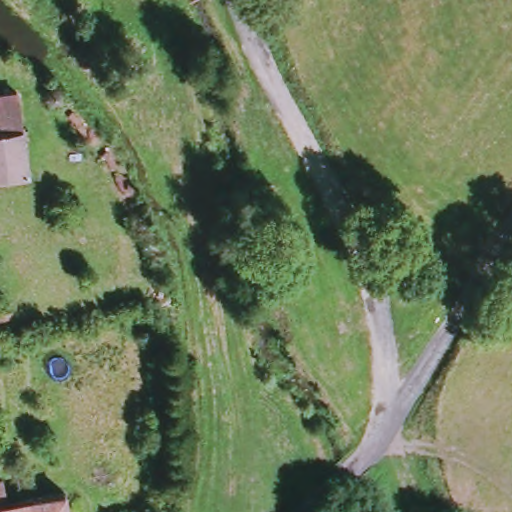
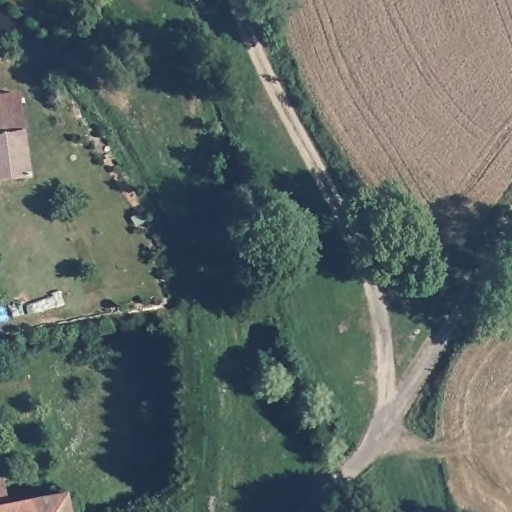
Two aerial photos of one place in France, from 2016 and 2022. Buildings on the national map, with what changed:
unchanged [(35,172),(0,177),(0,96),(24,94),(35,172)]
unchanged [(15,503),(72,496),(75,512),(0,512),(0,482),(10,481),(15,503)]

